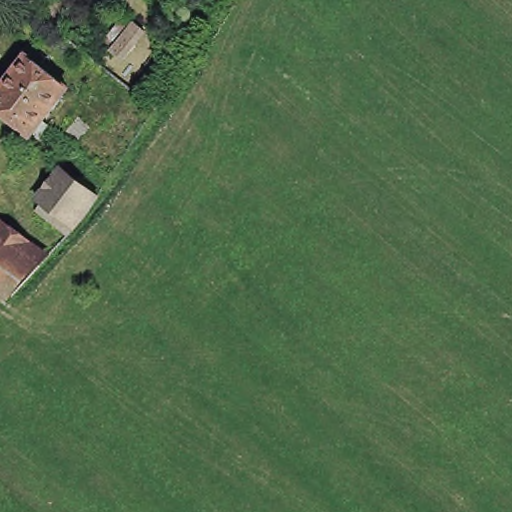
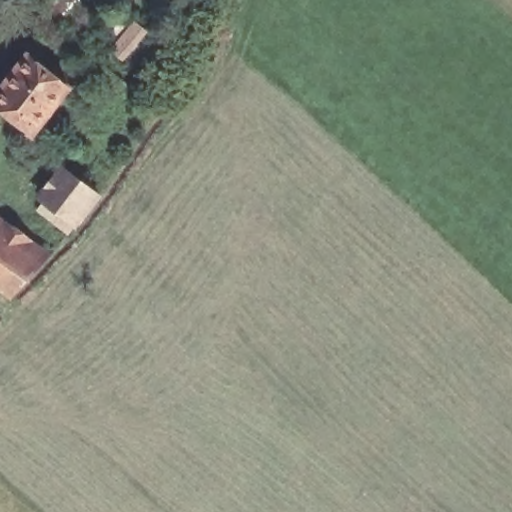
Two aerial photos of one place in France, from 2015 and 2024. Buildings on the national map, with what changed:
unchanged [(112,51),(135,23),(145,31),(122,60),(112,51)]
unchanged [(69,95),(32,142),(0,117),(0,97),(28,61),(69,95)]
unchanged [(45,216),(38,210),(44,203),(67,171),(75,177),(100,196),(91,210),(77,229),(70,235),(45,216)]
unchanged [(0,238),(15,250),(22,255),(42,270),(13,301),(0,292),(0,238)]

